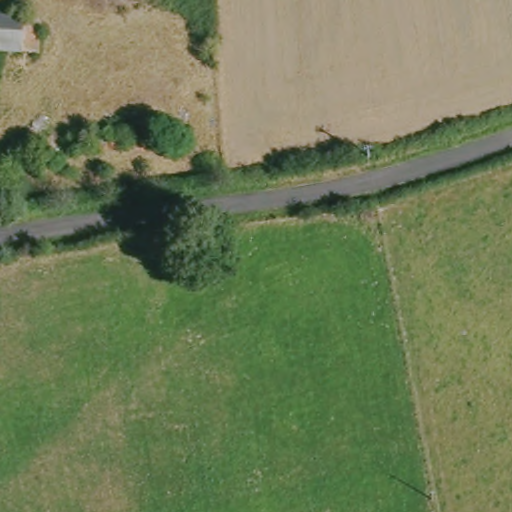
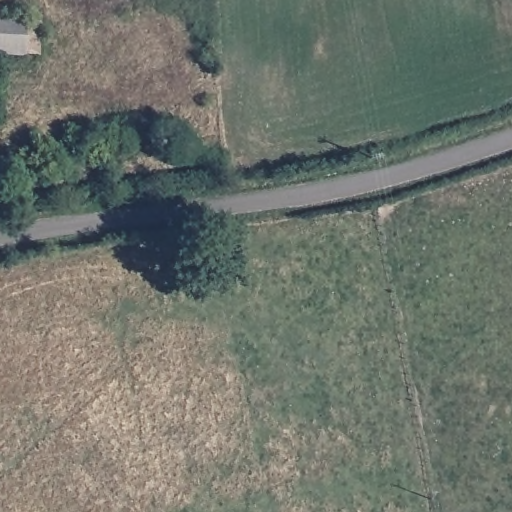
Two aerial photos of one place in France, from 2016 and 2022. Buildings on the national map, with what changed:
unchanged [(21,13),(20,48),(0,47),(0,12),(21,13)]

